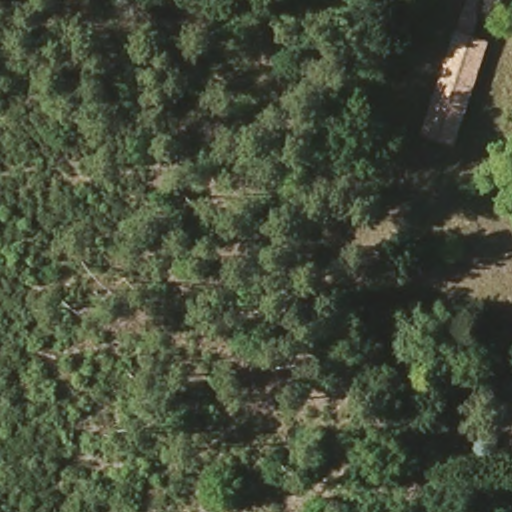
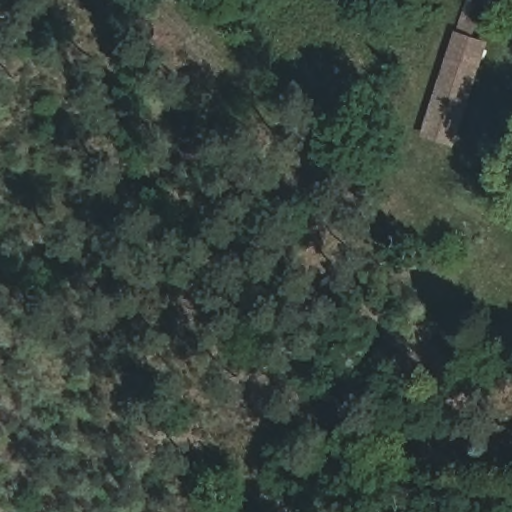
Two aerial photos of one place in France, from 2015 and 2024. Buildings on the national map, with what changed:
unchanged [(462,0),(490,0),(479,48),(449,40),(462,0)]
unchanged [(479,48),(490,52),(461,150),(419,136),(449,40),(479,48)]

